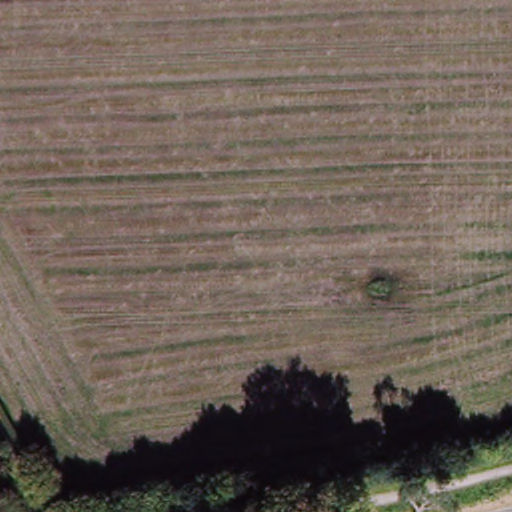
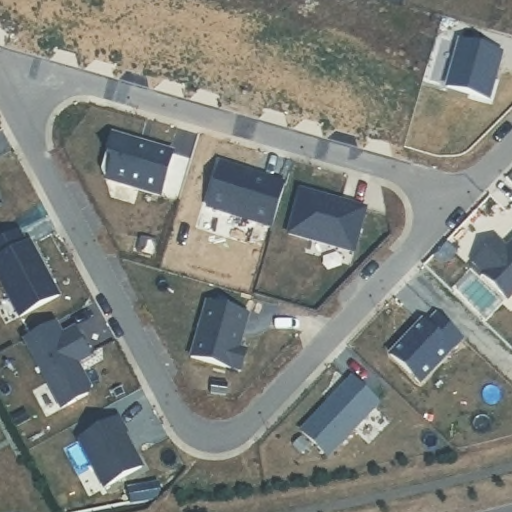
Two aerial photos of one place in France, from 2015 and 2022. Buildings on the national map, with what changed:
new [(503,53),(489,101),(444,88),(457,40),(503,53)]
new [(176,150),(163,197),(106,183),(101,170),(112,133),(176,150)]
new [(274,232),(210,212),(223,170),(286,189),(274,232)]
new [(369,208),(356,253),(286,235),(298,189),(369,208)]
new [(0,212),(0,200),(5,209),(0,212)]
new [(29,249),(33,247),(62,300),(23,321),(0,279),(0,247),(22,235),(29,249)]
new [(496,245),(505,255),(512,248),(512,298),(506,304),(481,280),(483,278),(473,269),(496,245)]
new [(209,307),(250,319),(241,351),(247,353),(241,374),(193,360),(209,307)]
new [(57,326),(65,340),(77,333),(92,361),(80,367),(92,391),(90,398),(64,412),(26,343),(57,326)]
new [(381,402),(329,459),(298,429),(351,375),(381,402)]
new [(120,421),(128,435),(126,436),(144,469),(106,489),(80,443),(120,421)]

